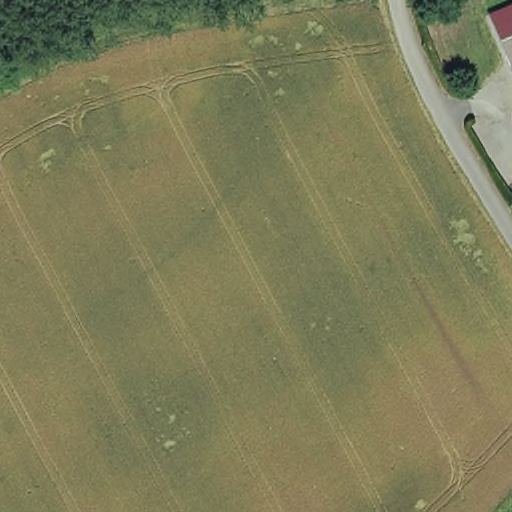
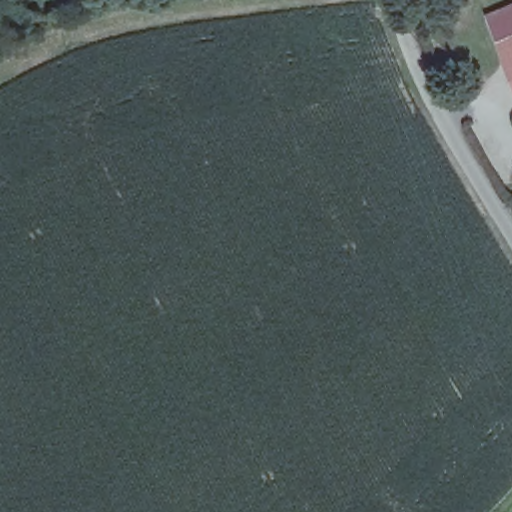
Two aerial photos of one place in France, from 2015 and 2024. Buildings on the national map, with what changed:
unchanged [(512,77),(488,14),(512,3),(512,77)]

